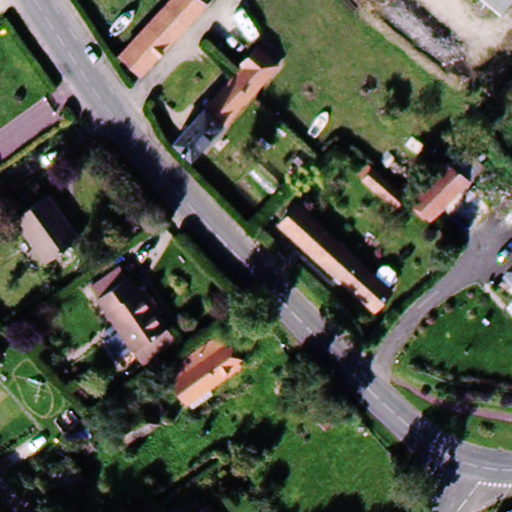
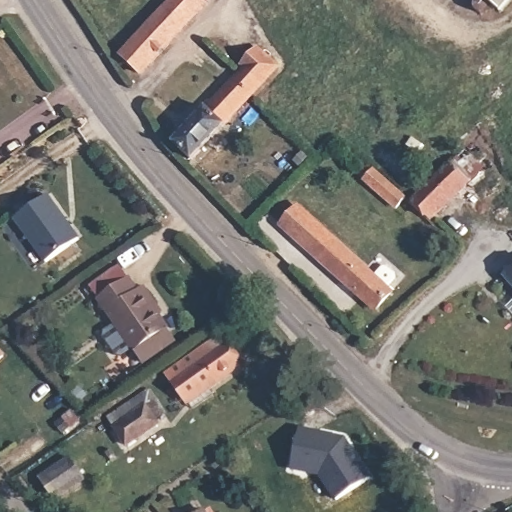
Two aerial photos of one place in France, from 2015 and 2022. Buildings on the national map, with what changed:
unchanged [(211,5),(146,70),(126,52),(179,0),(207,0),(211,5)]
unchanged [(480,10),(471,0),(492,0),(480,10)]
unchanged [(179,164),(161,144),(252,47),(271,66),(179,164)]
unchanged [(360,169),(371,159),(405,199),(395,210),(360,169)]
unchanged [(463,184),(425,221),(421,218),(411,205),(448,166),(463,184)]
unchanged [(36,265),(10,212),(48,194),(72,245),(36,265)]
unchanged [(395,299),(384,311),(377,317),(283,222),(301,204),(395,298),(395,299)]
unchanged [(509,264),(512,268),(512,283),(501,271),(509,264)]
unchanged [(128,275),(135,290),(145,285),(155,306),(150,308),(160,330),(122,350),(95,292),(128,275)]
unchanged [(225,342),(238,375),(184,405),(170,370),(225,342)]
unchanged [(0,362),(0,350),(6,356),(0,362)]
unchanged [(145,431),(150,440),(122,455),(106,423),(150,401),(160,423),(145,431)]
new [(346,437),(371,478),(335,500),(321,476),(293,471),(300,431),(346,437)]
unchanged [(35,477),(72,456),(86,487),(50,507),(35,477)]
unchanged [(211,512),(199,512),(208,506),(211,512)]

